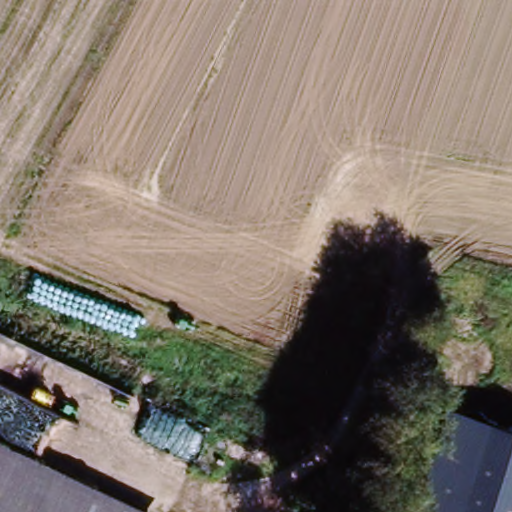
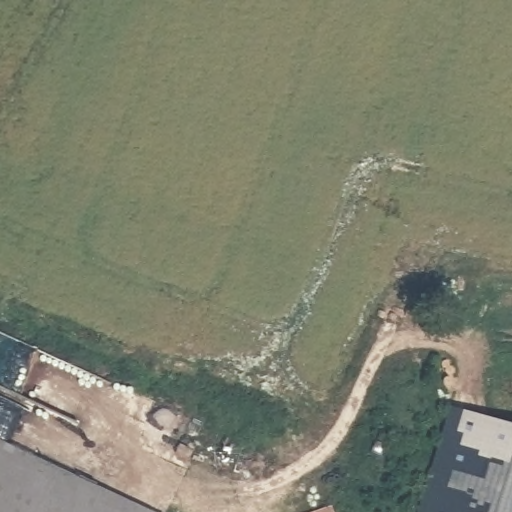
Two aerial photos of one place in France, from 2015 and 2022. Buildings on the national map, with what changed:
unchanged [(457,408),(512,428),(512,512),(422,512),(457,408)]
unchanged [(0,440),(154,512),(0,512),(0,440)]

